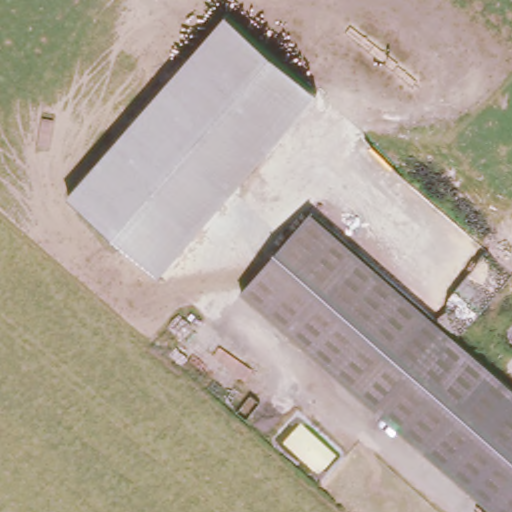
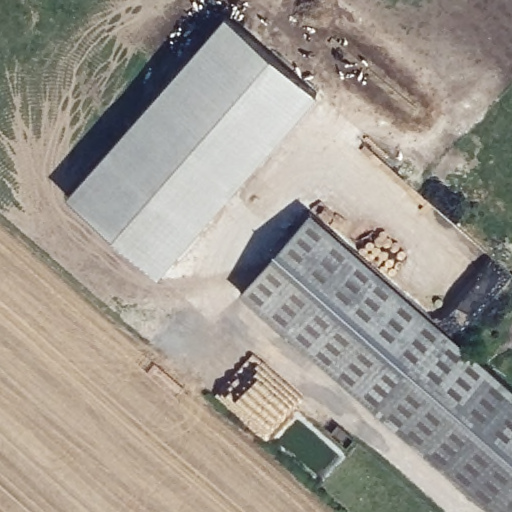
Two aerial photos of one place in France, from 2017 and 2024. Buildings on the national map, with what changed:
unchanged [(70,196),(225,15),(317,95),(160,276),(70,196)]
unchanged [(512,387),(512,512),(495,512),(238,290),(307,209),(512,387)]

